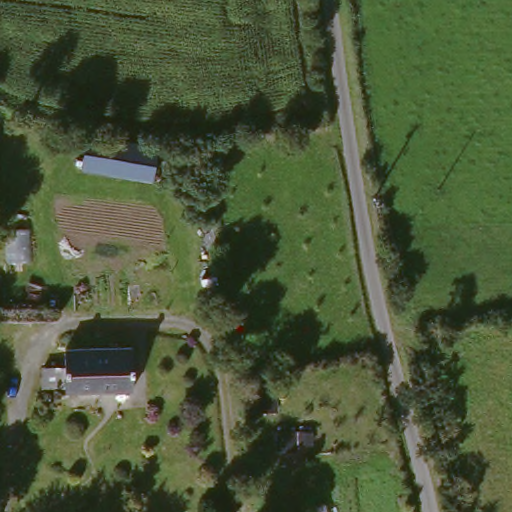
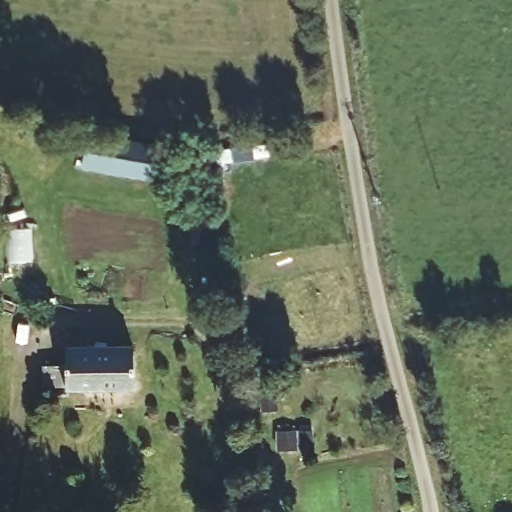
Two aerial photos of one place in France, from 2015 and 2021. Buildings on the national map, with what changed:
unchanged [(86,129),(155,141),(148,177),(78,168),(86,129)]
unchanged [(127,348),(129,393),(62,395),(60,350),(127,348)]

